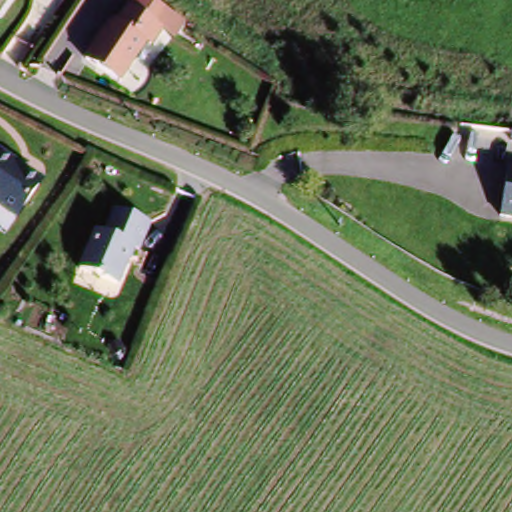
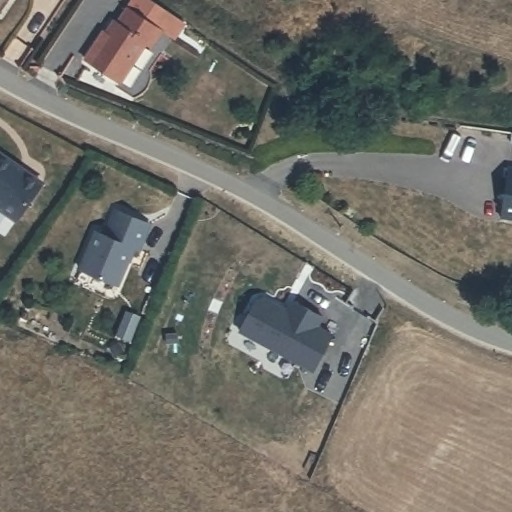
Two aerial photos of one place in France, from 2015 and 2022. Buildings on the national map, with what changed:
unchanged [(0,0),(2,0),(0,4),(0,0)]
unchanged [(126,23),(136,6),(168,26),(158,43),(153,40),(126,81),(93,61),(121,20),(126,23)]
unchanged [(15,218),(0,207),(0,151),(41,182),(15,218)]
unchanged [(505,216),(511,168),(512,168),(512,217),(505,216)]
unchanged [(120,211),(155,225),(143,252),(137,249),(120,284),(84,268),(100,232),(110,234),(120,211)]
new [(254,301),(261,299),(281,309),(280,311),(285,314),(292,301),(321,316),(315,327),(332,336),(314,371),(237,332),(254,301)]

